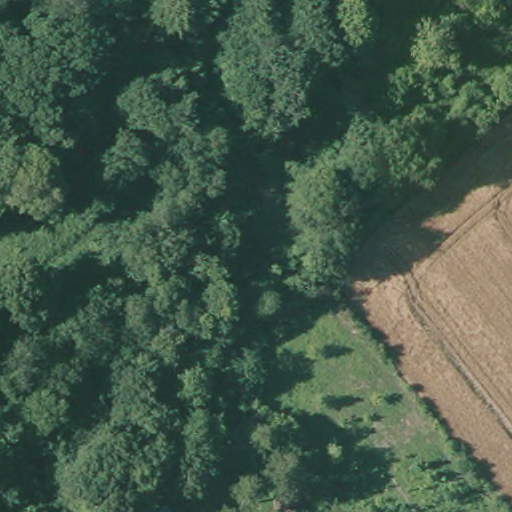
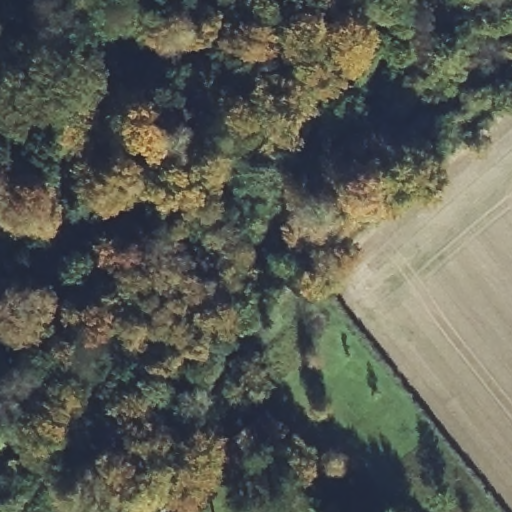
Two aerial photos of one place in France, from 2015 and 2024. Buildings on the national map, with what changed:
unchanged [(231,437),(256,418),(268,434),(244,453),(231,437)]

